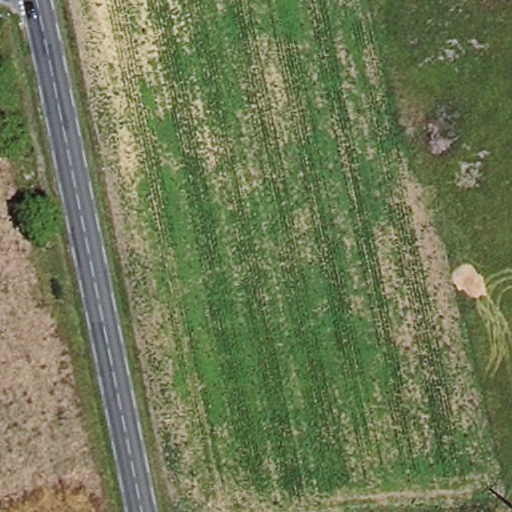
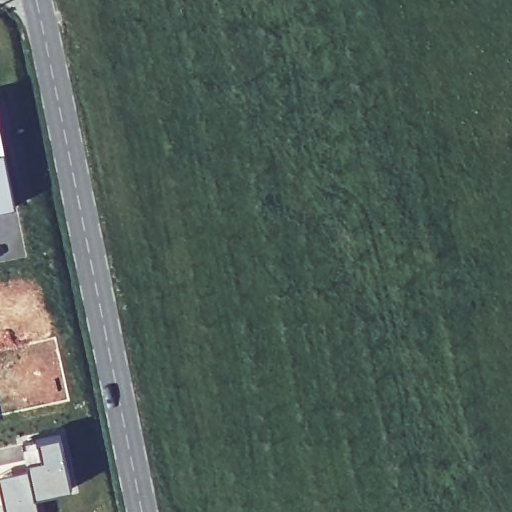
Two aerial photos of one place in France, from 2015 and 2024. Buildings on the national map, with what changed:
new [(17,206),(0,209),(0,117),(17,206)]
new [(57,337),(70,398),(0,415),(0,350),(57,337)]
new [(60,434),(72,488),(37,497),(28,467),(24,442),(60,434)]
new [(28,467),(37,497),(39,512),(5,512),(0,490),(0,474),(28,467)]

